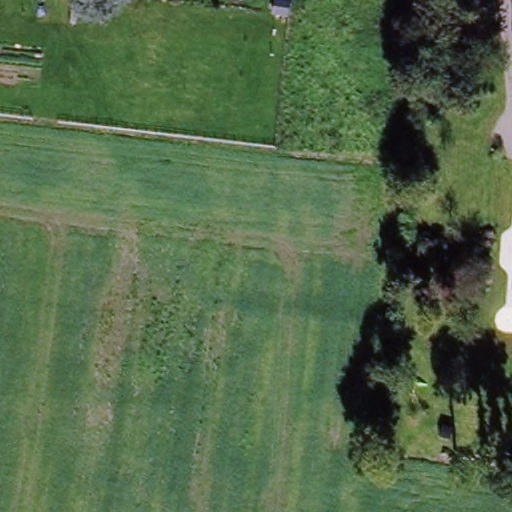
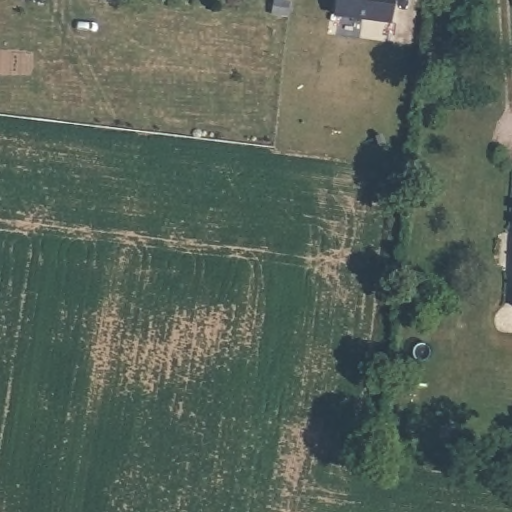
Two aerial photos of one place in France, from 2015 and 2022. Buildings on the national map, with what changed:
new [(337,0),(390,0),(388,20),(335,15),(337,0)]

